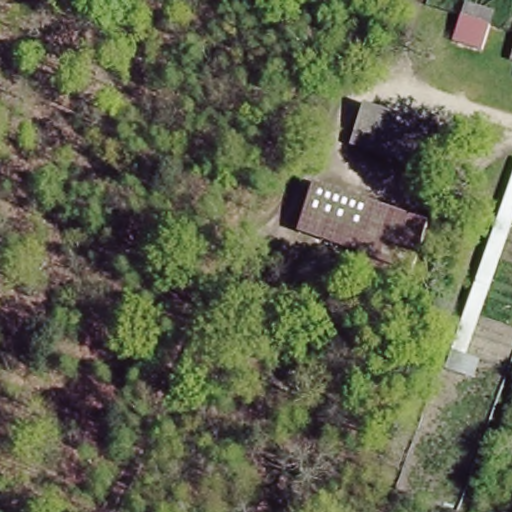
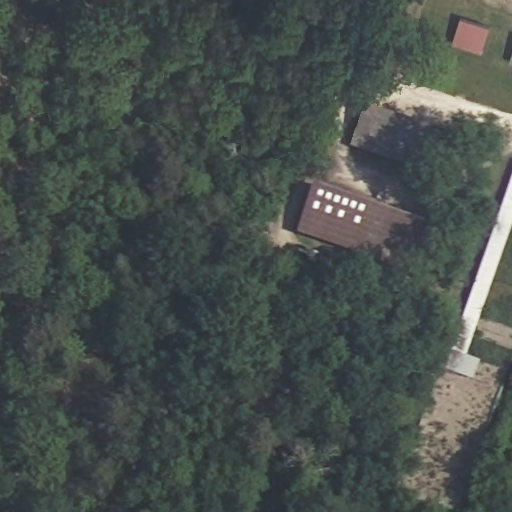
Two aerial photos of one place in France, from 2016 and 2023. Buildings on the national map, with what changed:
unchanged [(495,9),(490,23),(481,50),(452,41),(460,15),(465,1),(495,9)]
unchanged [(512,53),(512,62),(510,61),(512,53)]
unchanged [(445,130),(435,165),(349,144),(357,109),(445,130)]
unchanged [(444,370),(512,168),(512,227),(467,355),(480,358),(472,378),(444,370)]
unchanged [(425,221),(409,272),(300,245),(312,194),(425,221)]

